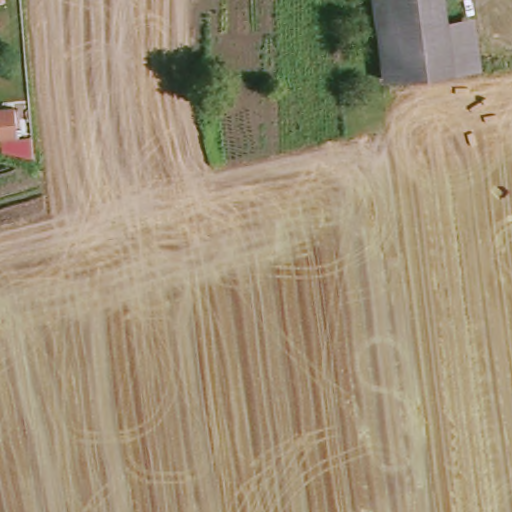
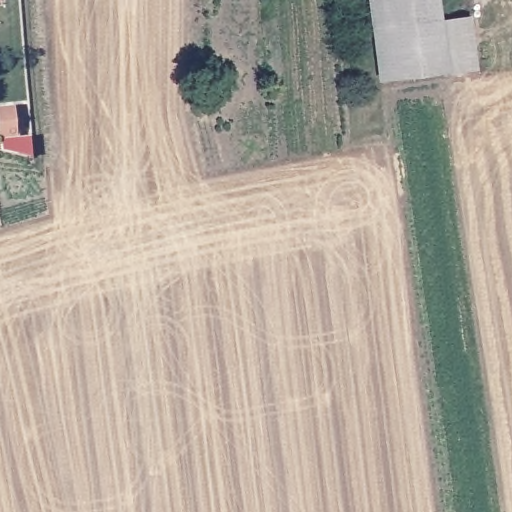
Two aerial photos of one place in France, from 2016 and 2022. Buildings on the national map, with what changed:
unchanged [(382,77),(372,0),(444,0),(447,18),(453,70),(382,77)]
unchanged [(447,18),(475,16),(480,67),(453,70),(447,18)]
unchanged [(0,139),(0,113),(10,112),(12,137),(0,139)]

